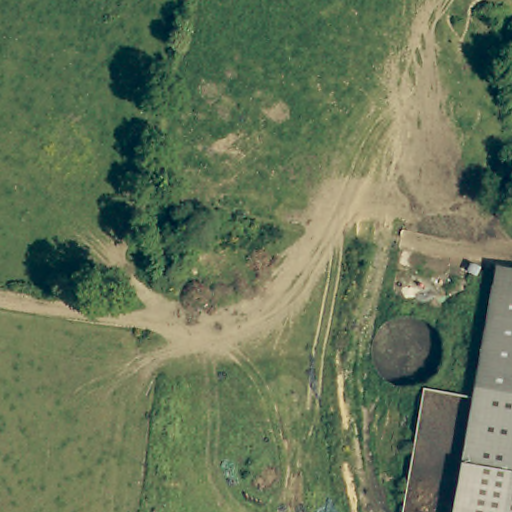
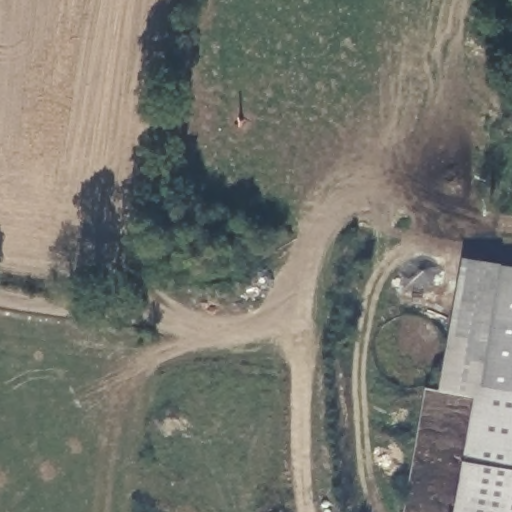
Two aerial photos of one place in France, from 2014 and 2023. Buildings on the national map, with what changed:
new [(475,398),(438,392),(461,264),(497,270),(475,398)]
unchanged [(497,270),(512,273),(512,512),(456,512),(464,467),(497,270)]

